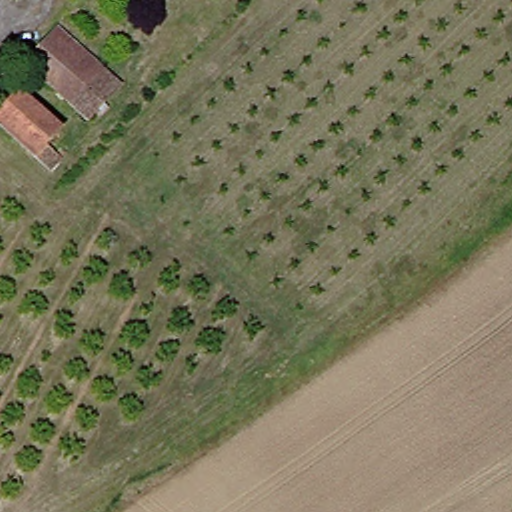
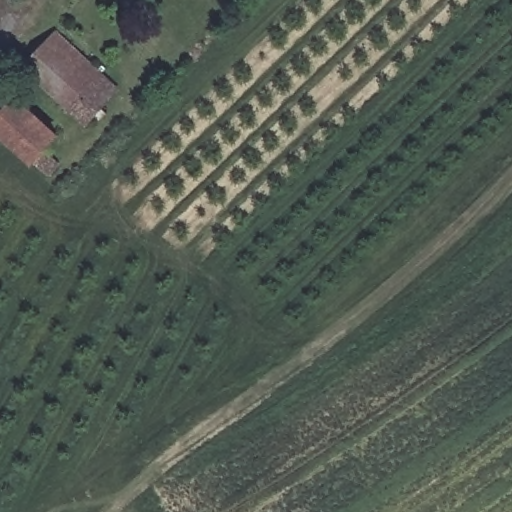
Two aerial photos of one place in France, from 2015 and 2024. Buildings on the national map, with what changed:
unchanged [(93,127),(30,69),(68,27),(129,88),(93,127)]
unchanged [(55,160),(46,170),(33,160),(0,129),(0,118),(18,97),(56,133),(61,137),(49,152),(55,160)]

